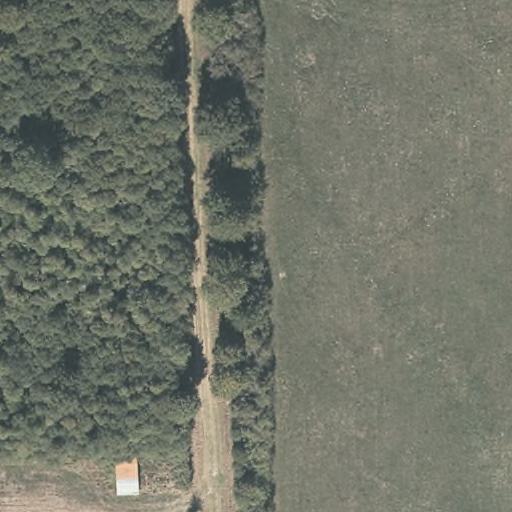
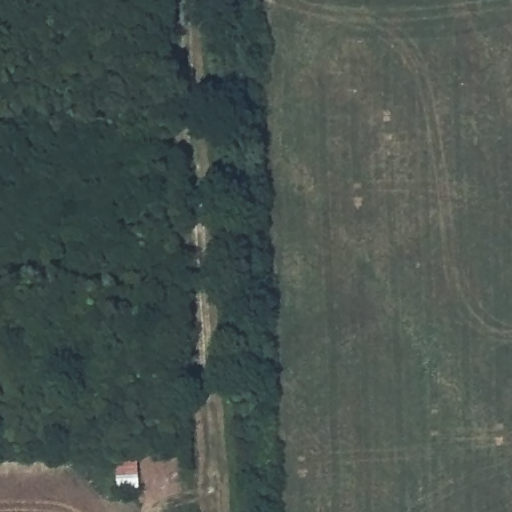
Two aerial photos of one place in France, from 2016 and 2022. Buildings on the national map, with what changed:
unchanged [(143,454),(145,491),(122,494),(119,453),(143,454)]

